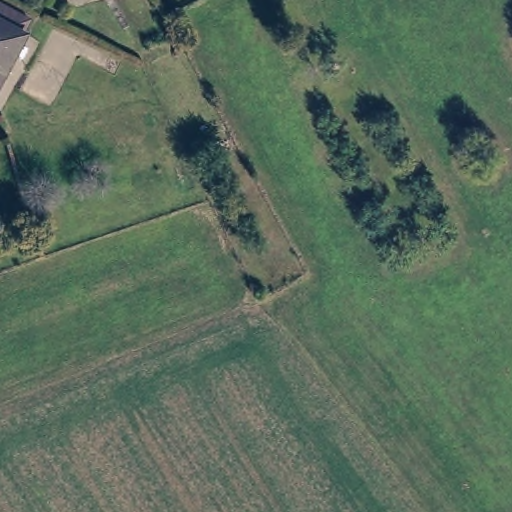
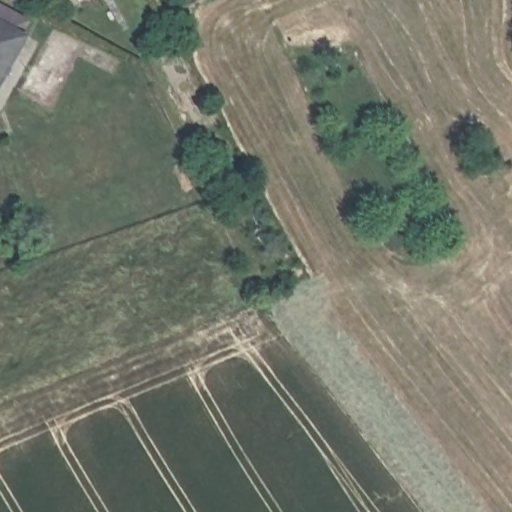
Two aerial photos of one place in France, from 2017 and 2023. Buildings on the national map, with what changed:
unchanged [(0,82),(0,14),(25,27),(0,82)]

